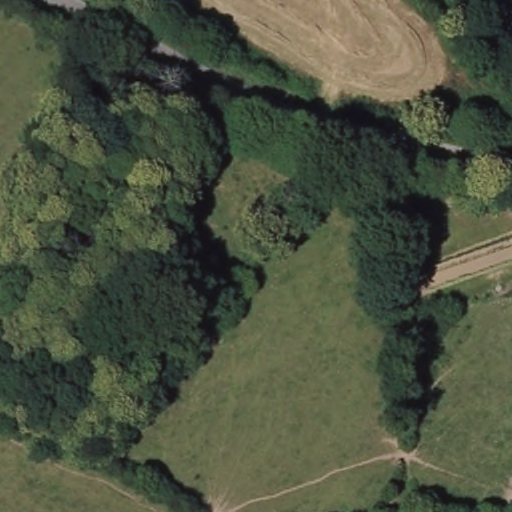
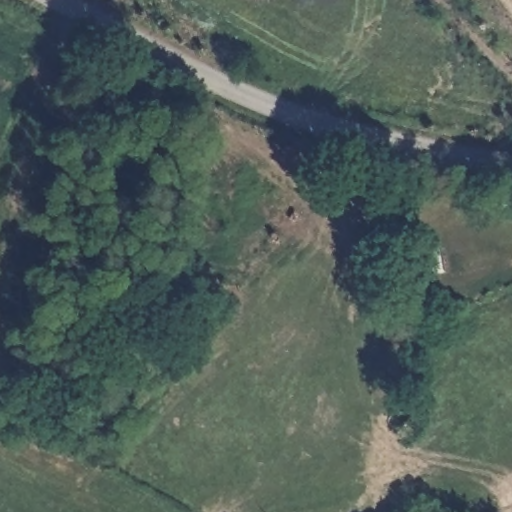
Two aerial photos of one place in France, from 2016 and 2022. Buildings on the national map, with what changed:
[]

